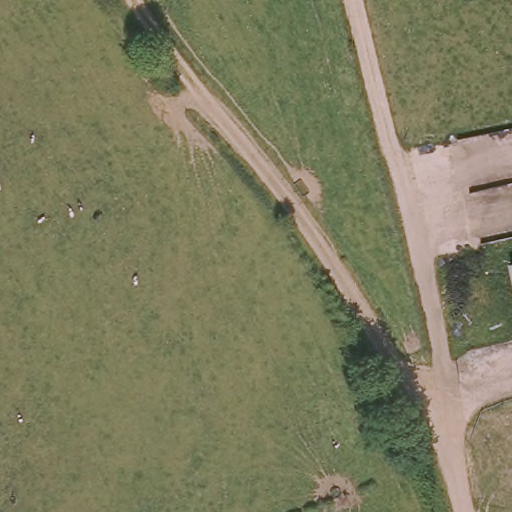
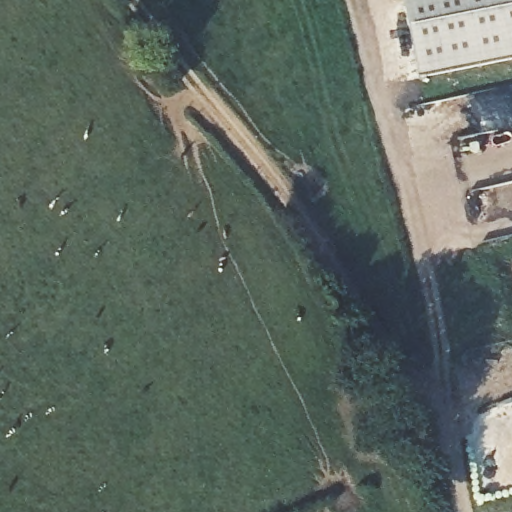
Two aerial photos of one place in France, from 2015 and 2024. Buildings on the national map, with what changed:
new [(403,0),(512,0),(512,61),(418,80),(403,0)]

